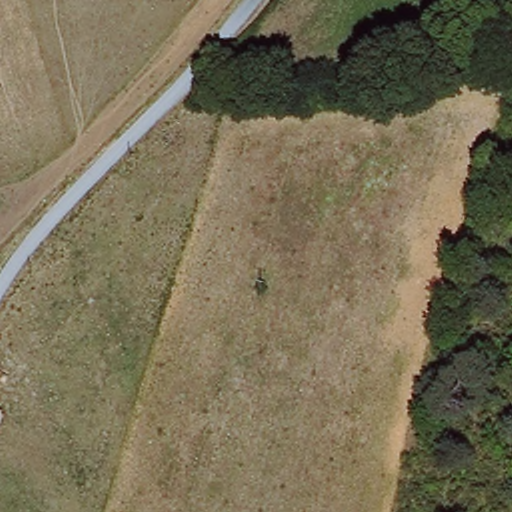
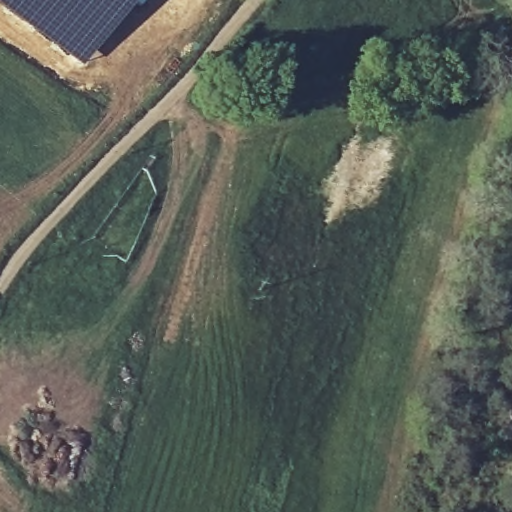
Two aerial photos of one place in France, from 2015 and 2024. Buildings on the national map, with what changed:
new [(80,65),(0,4),(0,0),(130,0),(80,65)]

